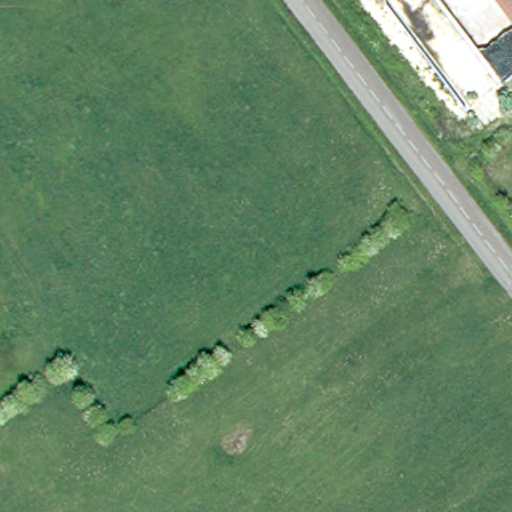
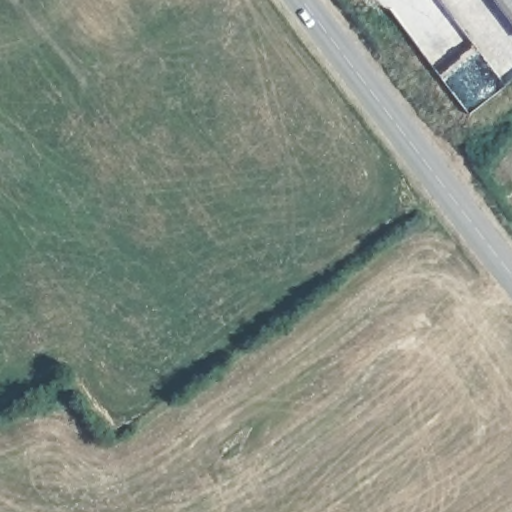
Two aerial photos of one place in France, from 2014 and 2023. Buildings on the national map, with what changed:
unchanged [(503,0),(512,0),(512,12),(503,0)]

